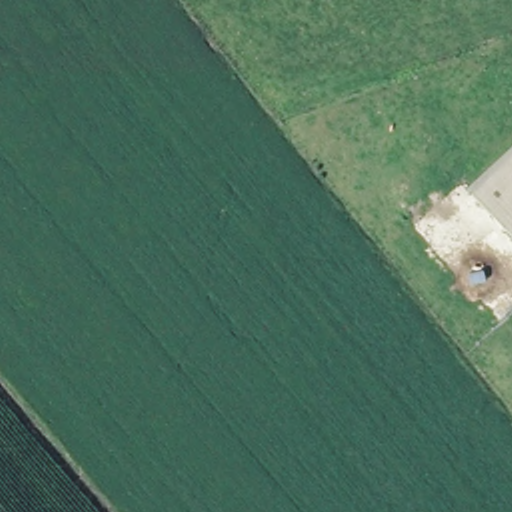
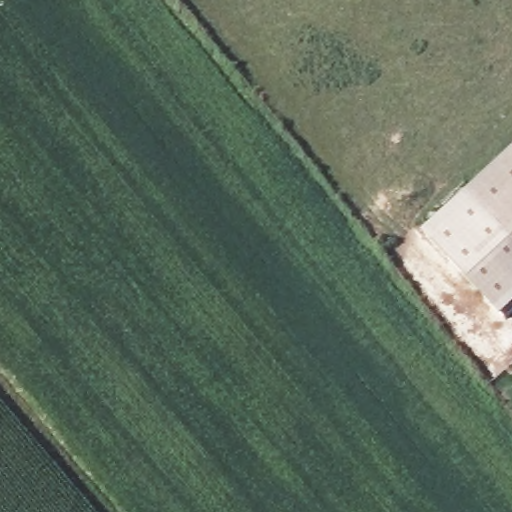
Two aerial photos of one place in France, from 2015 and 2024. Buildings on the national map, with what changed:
unchanged [(512,148),(512,233),(470,188),(512,148)]
new [(512,233),(512,300),(499,312),(425,227),(470,188),(512,233)]

